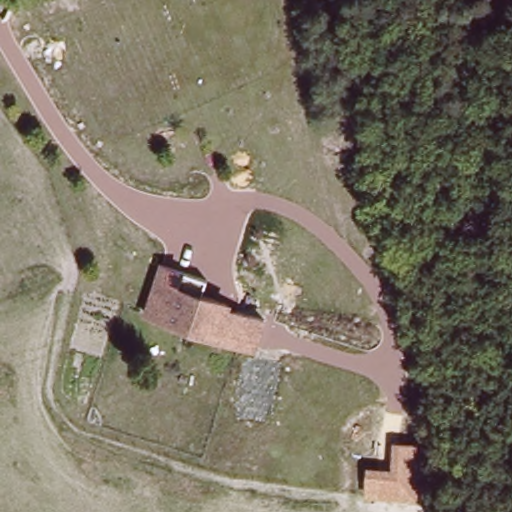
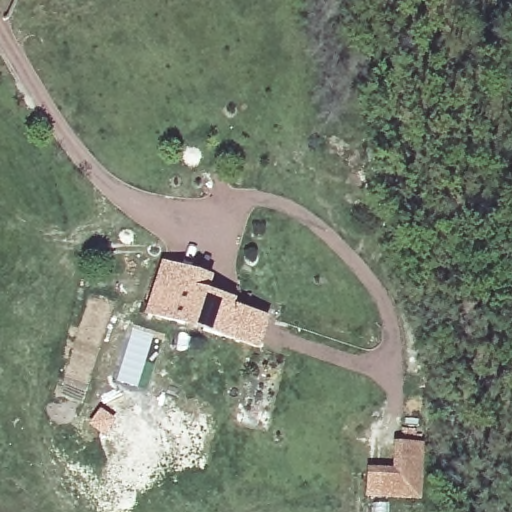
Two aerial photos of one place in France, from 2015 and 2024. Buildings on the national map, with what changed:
unchanged [(210,285),(205,300),(232,309),(230,313),(268,325),(258,354),(205,337),(206,332),(186,326),(185,330),(149,319),(165,270),(210,285)]
unchanged [(431,441),(427,500),(366,496),(367,475),(401,477),(403,440),(431,441)]

